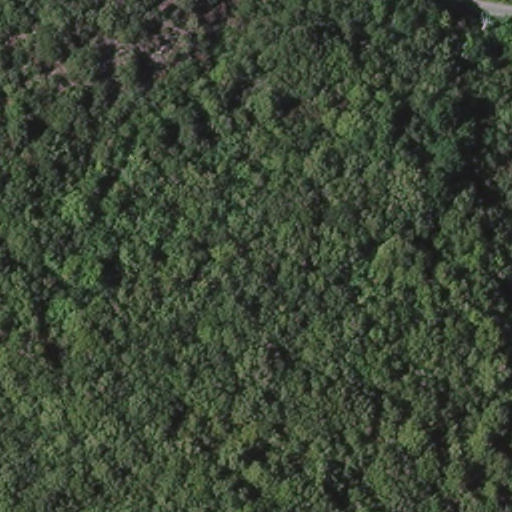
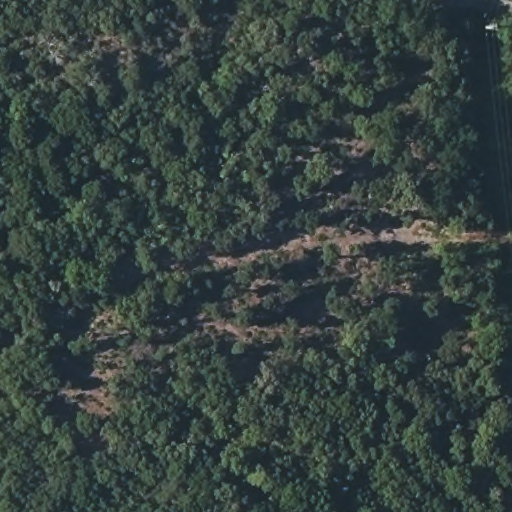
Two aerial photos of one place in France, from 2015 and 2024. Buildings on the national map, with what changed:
[]

